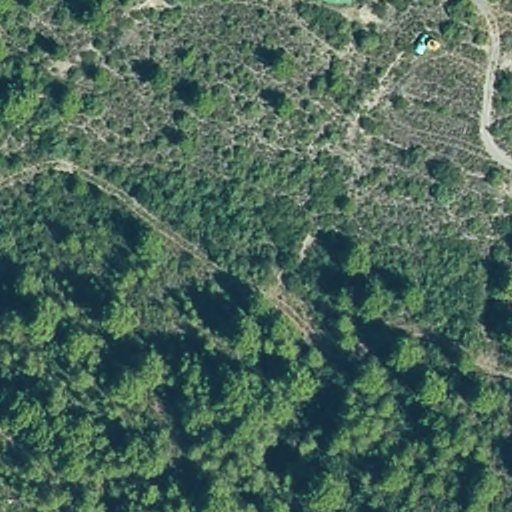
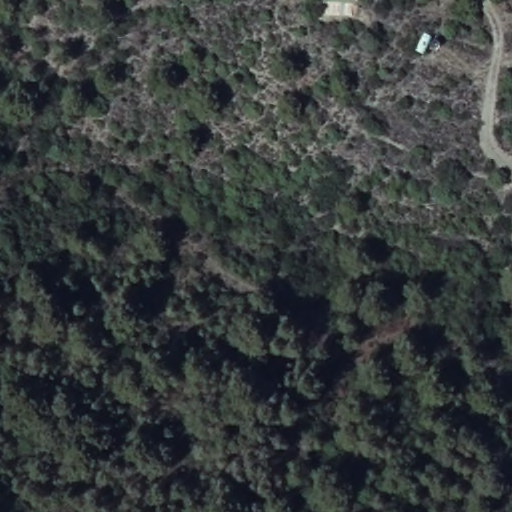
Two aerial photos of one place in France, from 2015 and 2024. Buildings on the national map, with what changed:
[]

